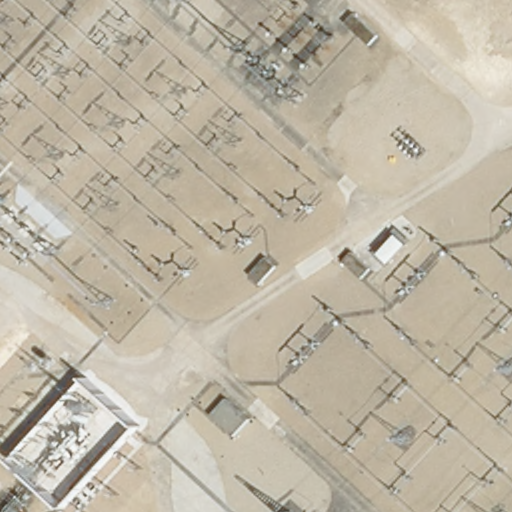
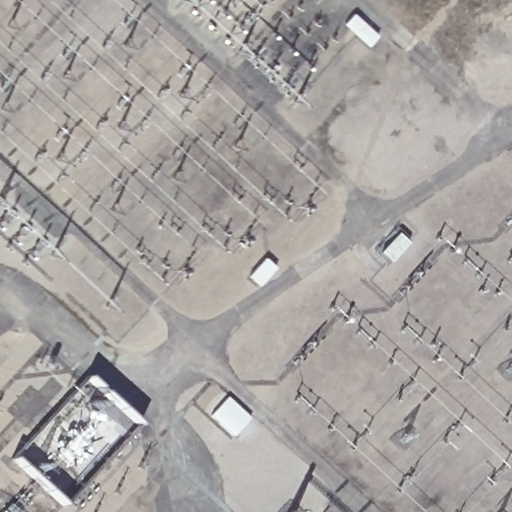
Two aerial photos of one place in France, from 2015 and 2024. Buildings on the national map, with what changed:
[]

